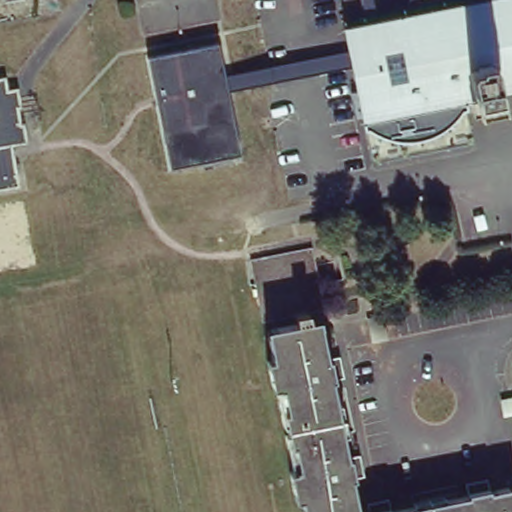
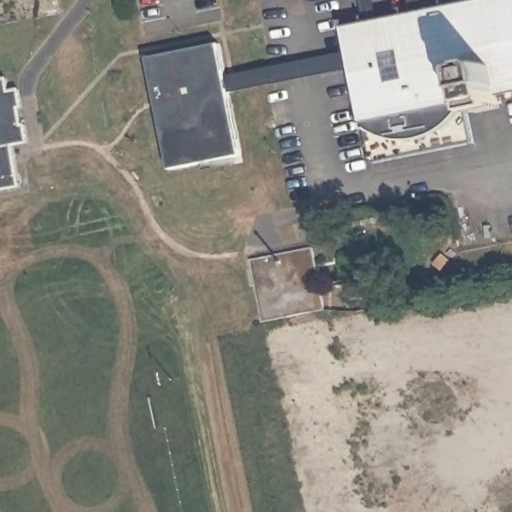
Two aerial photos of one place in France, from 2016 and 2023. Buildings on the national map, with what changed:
unchanged [(474,144),(370,165),(362,123),(343,25),(471,0),(512,0),(512,93),(499,95),(500,100),(474,105),(473,100),(465,102),(474,144)]
unchanged [(217,40),(240,155),(169,169),(146,54),(217,40)]
unchanged [(26,142),(11,145),(19,187),(0,190),(0,79),(4,78),(6,90),(17,88),(20,107),(17,108),(19,119),(23,119),(26,142)]
demolished [(310,249),(323,308),(262,320),(250,260),(310,249)]
demolished [(317,320),(325,359),(335,357),(339,378),(330,380),(346,457),(355,455),(359,477),(350,479),(357,512),(304,512),(295,469),(299,468),(293,440),(289,441),(284,415),(287,414),(282,388),(279,389),(267,329),(317,320)]
demolished [(389,503),(391,511),(467,496),(465,487),(487,482),(489,491),(512,487),(512,512),(368,512),(367,507),(389,503)]

